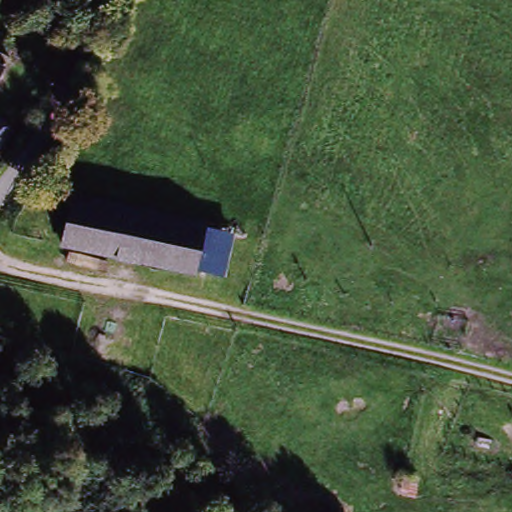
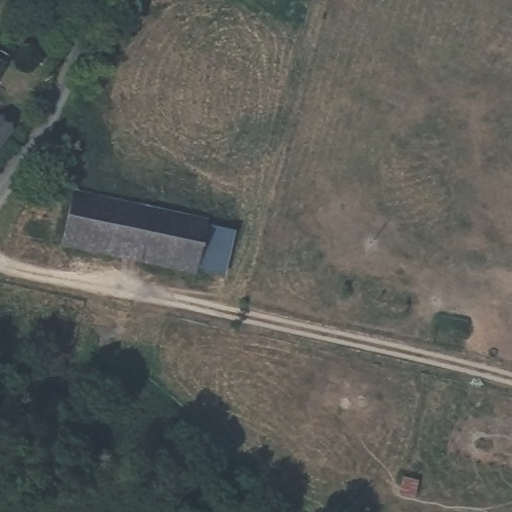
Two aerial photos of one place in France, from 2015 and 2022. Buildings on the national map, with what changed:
unchanged [(8,66),(0,84),(0,54),(3,55),(8,66)]
unchanged [(0,146),(0,135),(6,140),(0,146)]
unchanged [(198,277),(56,250),(71,191),(206,224),(198,277)]

